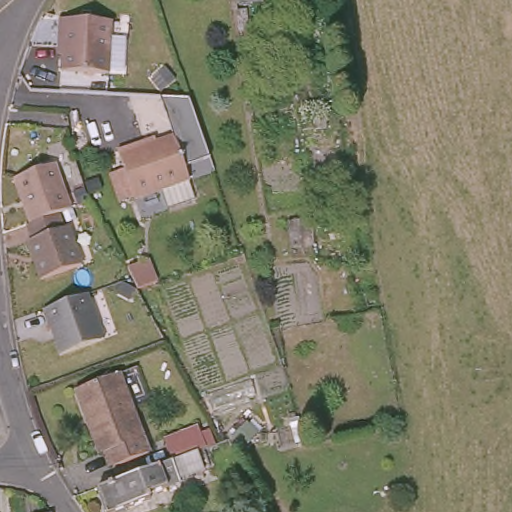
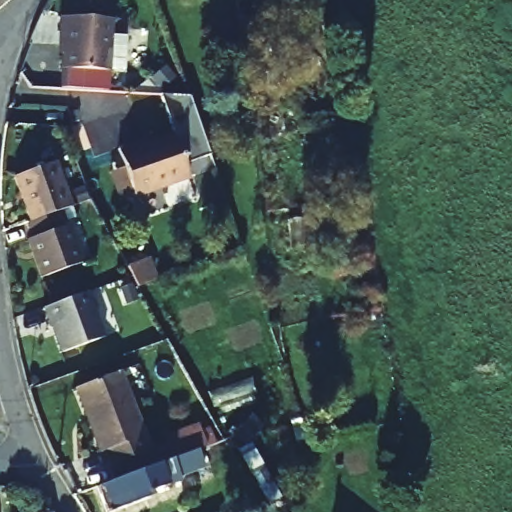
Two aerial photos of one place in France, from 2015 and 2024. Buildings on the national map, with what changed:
unchanged [(236,0),(242,0),(236,1),(236,0)]
unchanged [(262,100),(252,102),(238,7),(247,6),(262,100)]
unchanged [(106,22),(105,38),(121,39),(119,72),(104,71),(103,74),(57,72),(59,47),(53,46),(55,19),(106,22)]
unchanged [(189,178),(188,180),(194,198),(168,207),(161,190),(134,199),(117,151),(142,143),(144,146),(174,137),(189,178)]
unchanged [(30,224),(12,173),(53,158),(70,209),(58,214),(30,224)]
unchanged [(58,214),(63,229),(68,228),(81,265),(41,279),(28,242),(32,239),(27,225),(30,224),(58,214)]
unchanged [(152,288),(137,296),(129,274),(135,272),(146,269),(152,288)]
unchanged [(104,341),(64,356),(58,339),(61,335),(59,327),(51,329),(45,309),(87,293),(104,341)]
unchanged [(149,455),(109,470),(104,456),(100,456),(76,393),(119,377),(149,455)]
unchanged [(211,442),(182,456),(175,442),(204,428),(211,442)]
unchanged [(208,470),(178,483),(177,487),(147,499),(148,504),(126,512),(103,512),(96,492),(201,453),(208,470)]

